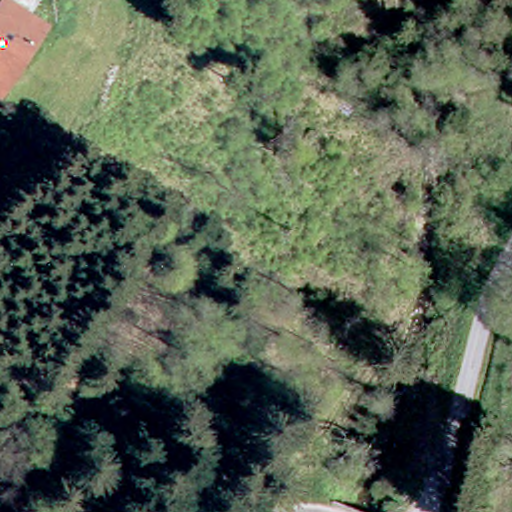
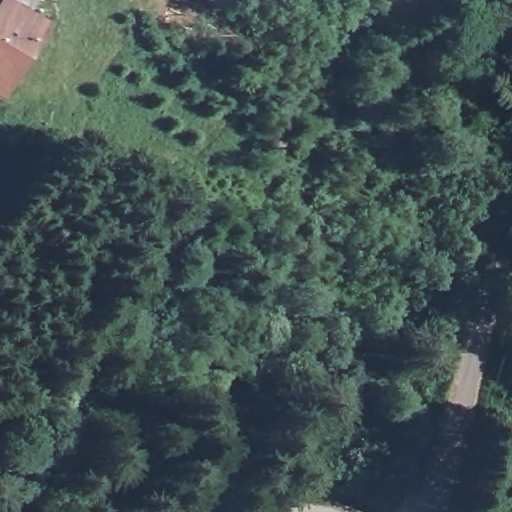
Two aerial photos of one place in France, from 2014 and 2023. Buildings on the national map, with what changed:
unchanged [(0,100),(0,7),(3,2),(23,14),(46,27),(3,101),(0,100)]

